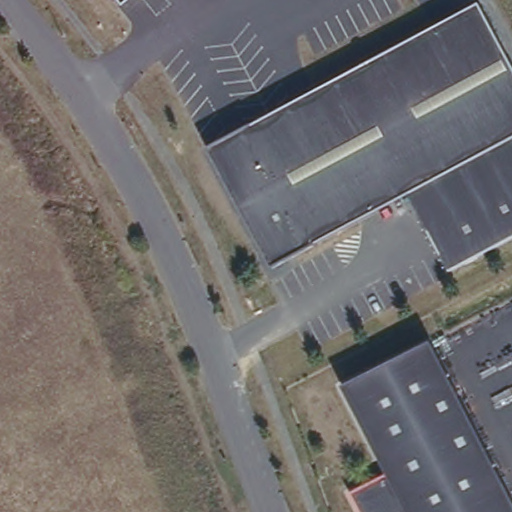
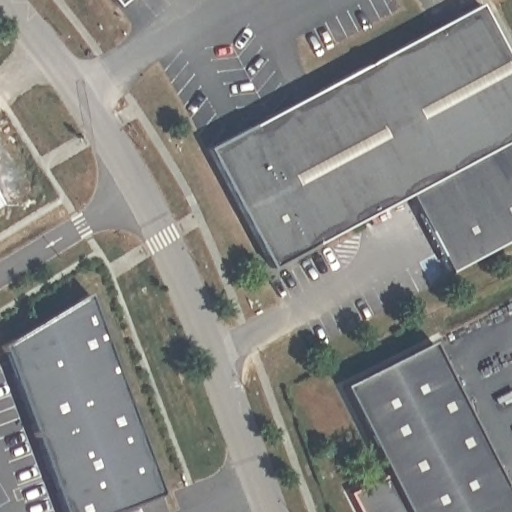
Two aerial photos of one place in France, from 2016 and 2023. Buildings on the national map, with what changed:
unchanged [(118,6),(113,0),(126,0),(118,6)]
unchanged [(208,148),(479,4),(512,65),(512,140),(272,268),(208,148)]
unchanged [(512,140),(512,239),(449,274),(409,194),(512,140)]
new [(163,494),(116,512),(62,512),(0,348),(0,347),(87,293),(163,494)]
unchanged [(359,512),(349,491),(387,471),(344,386),(432,341),(512,499),(512,512),(359,512)]

